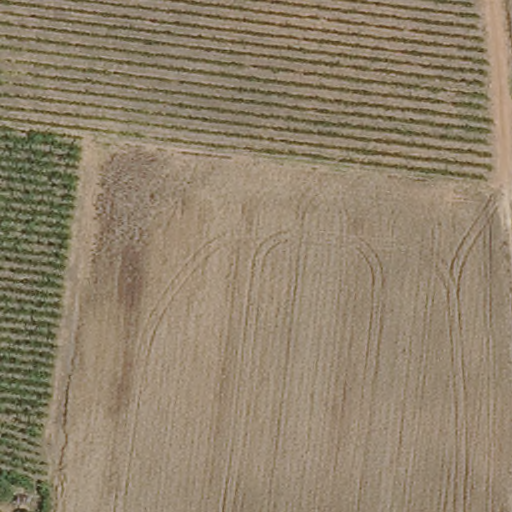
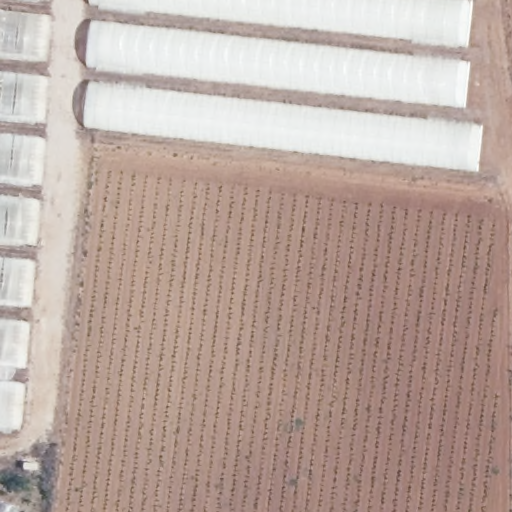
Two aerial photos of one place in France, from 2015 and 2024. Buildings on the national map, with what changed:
new [(45,0),(20,430),(0,427),(0,0),(45,0)]
new [(90,0),(453,0),(453,1),(470,4),(460,126),(480,128),(476,171),(83,128),(90,0)]

